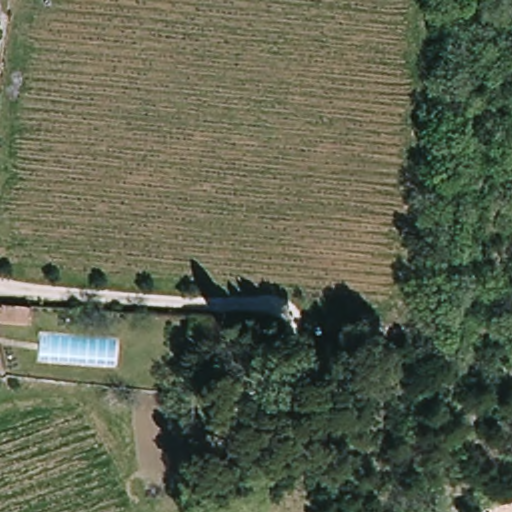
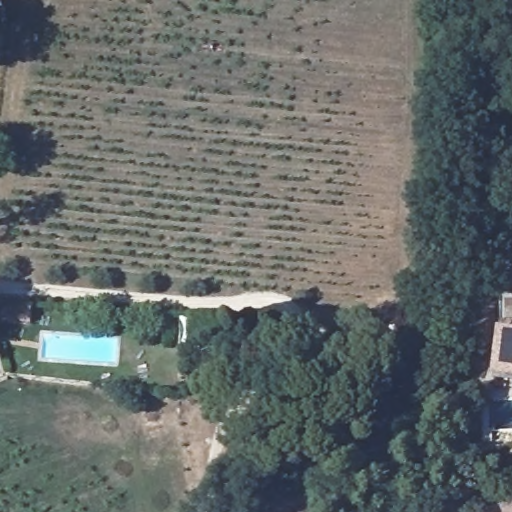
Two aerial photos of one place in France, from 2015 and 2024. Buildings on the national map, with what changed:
new [(502,325),(499,298),(512,298),(512,378),(492,375),(499,331),(502,325)]
unchanged [(36,306),(35,322),(0,320),(0,303),(36,306)]
unchanged [(222,318),(220,345),(189,342),(188,316),(222,318)]

